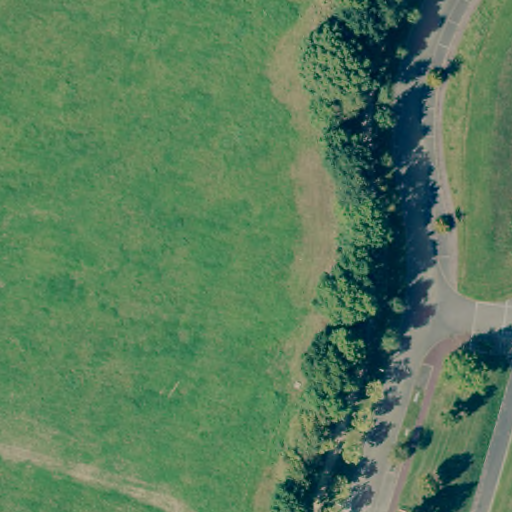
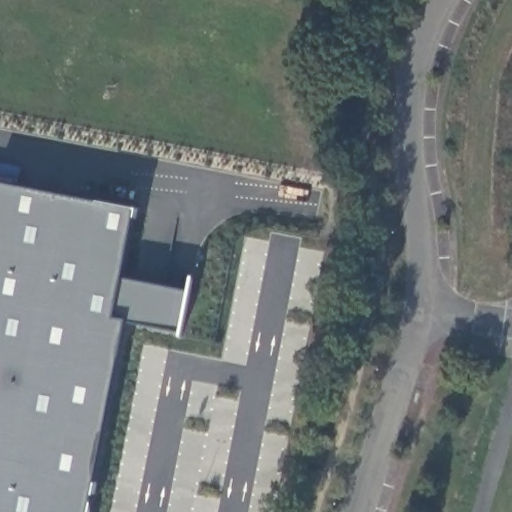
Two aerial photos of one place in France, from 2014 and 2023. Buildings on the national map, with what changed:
new [(122,277),(187,290),(180,330),(127,320),(88,512),(0,512),(0,183),(137,207),(122,277)]

